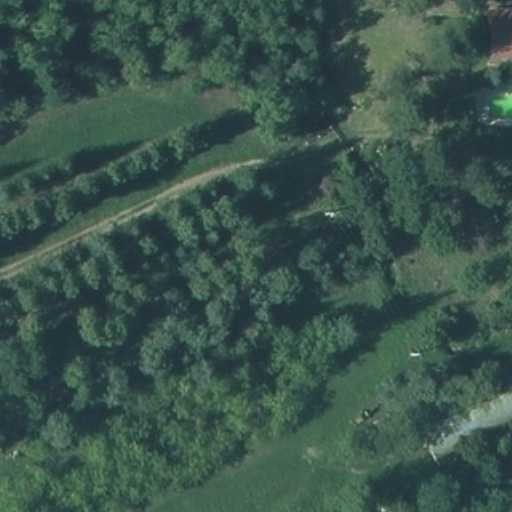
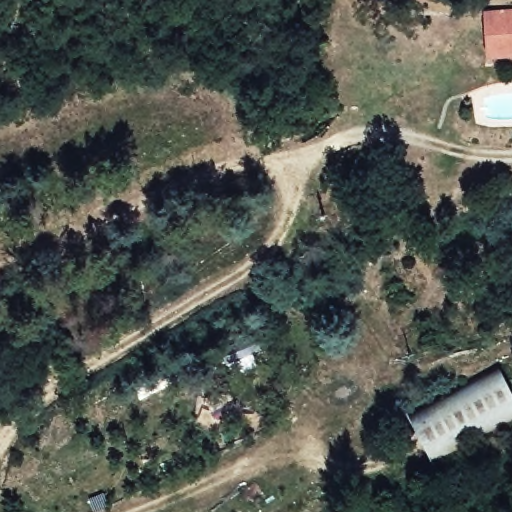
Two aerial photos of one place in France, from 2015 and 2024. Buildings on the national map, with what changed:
demolished [(512,10),(512,56),(488,57),(486,12),(512,10)]
new [(492,14),(512,12),(512,50),(495,51),(492,14)]
new [(512,385),(512,420),(438,468),(413,426),(504,370),(512,385)]
demolished [(412,420),(509,371),(512,377),(512,421),(433,458),(412,420)]

